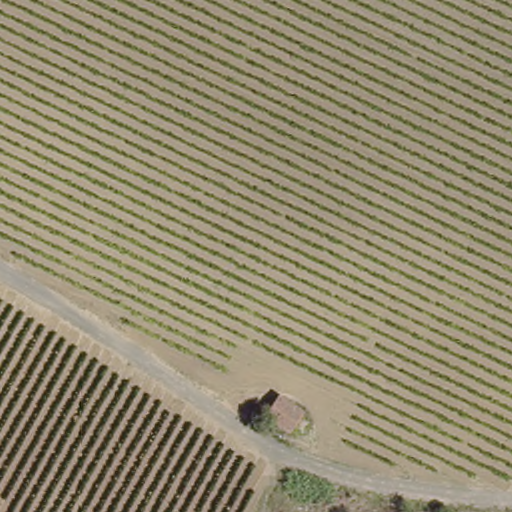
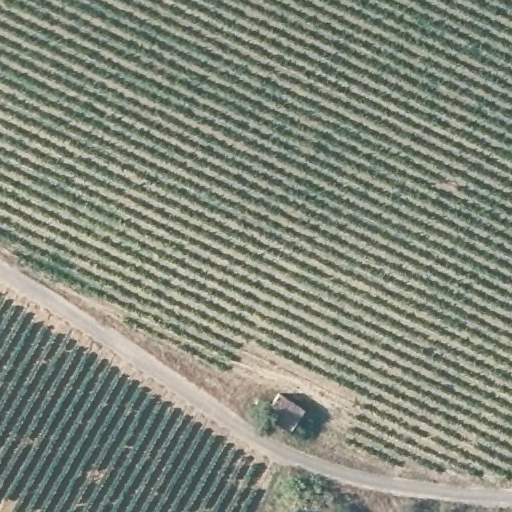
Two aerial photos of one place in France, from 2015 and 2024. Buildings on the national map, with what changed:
unchanged [(288,428),(264,412),(276,391),(300,406),(288,428)]

